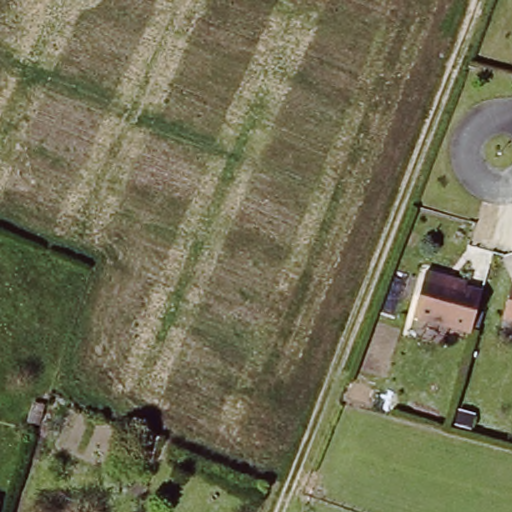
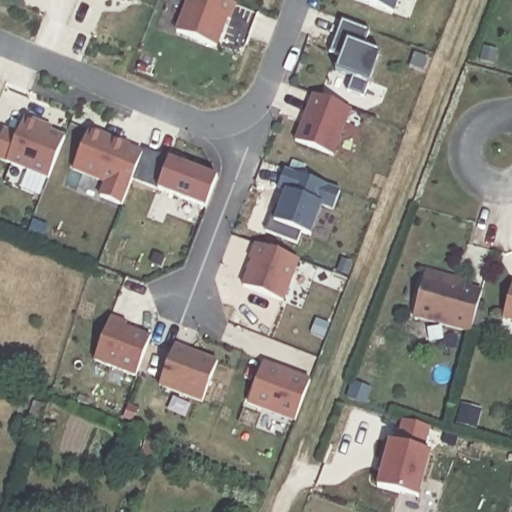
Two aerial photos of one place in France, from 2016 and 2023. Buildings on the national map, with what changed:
new [(114,0),(126,0),(125,4),(114,0)]
new [(228,21),(218,49),(175,32),(186,0),(223,0),(237,5),(231,22),(228,21)]
new [(358,0),(399,0),(393,14),(358,0)]
new [(363,46),(380,54),(370,82),(363,97),(346,91),(351,78),(335,71),(340,57),(330,53),(342,20),(368,30),(363,46)]
new [(334,157),(293,142),(312,94),(352,110),(334,157)]
new [(0,161),(0,135),(3,126),(18,133),(22,117),(52,127),(50,132),(66,137),(50,180),(0,161)]
new [(122,206),(98,196),(103,184),(72,171),(88,127),(131,145),(130,147),(143,154),(122,206)]
new [(206,209),(157,191),(170,159),(217,177),(206,209)]
new [(333,211),(321,207),(311,236),(273,223),(284,194),(277,190),(285,169),(288,170),(291,160),(307,166),(303,176),(340,190),(333,211)]
new [(283,304),(241,287),(250,260),(248,259),(254,243),(300,261),(283,304)]
unchanged [(467,338),(410,321),(425,271),(465,283),(462,291),(480,296),(467,338)]
unchanged [(503,325),(512,294),(512,327),(503,325)]
new [(136,377),(93,360),(111,316),(128,323),(127,326),(151,336),(136,377)]
new [(202,403),(160,387),(176,345),(217,361),(202,403)]
new [(296,422),(248,405),(263,362),(310,380),(296,422)]
new [(377,487),(387,441),(393,442),(402,420),(431,428),(422,450),(432,453),(418,498),(377,487)]

